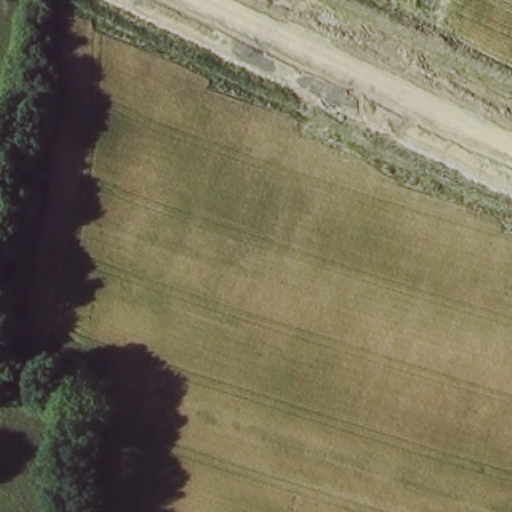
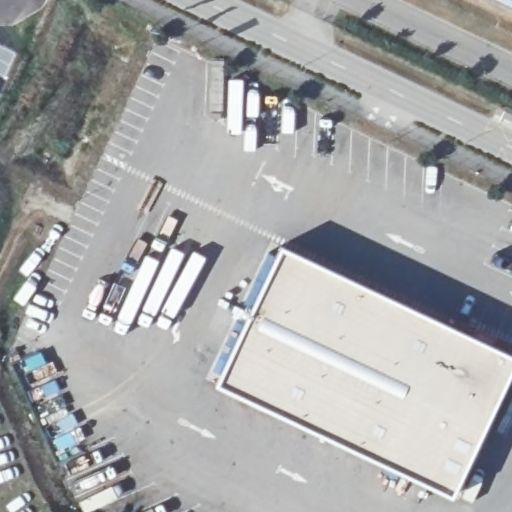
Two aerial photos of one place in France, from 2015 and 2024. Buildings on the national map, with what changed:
new [(512,376),(459,487),(224,380),(294,236),(512,338),(512,376)]

